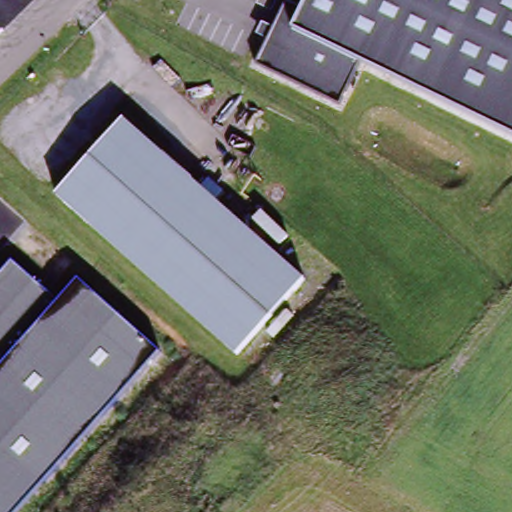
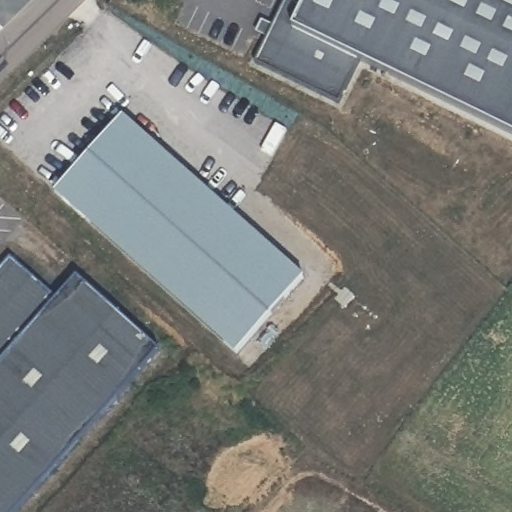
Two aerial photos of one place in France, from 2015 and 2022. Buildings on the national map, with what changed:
unchanged [(358,60),(336,105),(255,63),(266,39),(257,34),(263,21),(273,26),(285,0),(301,0),(305,2),(306,0),(512,0),(512,134),(358,60)]
unchanged [(232,353),(61,200),(130,124),(300,278),(232,353)]
unchanged [(15,258),(61,301),(81,278),(162,352),(156,359),(18,512),(0,512),(0,275),(1,273),(15,258)]

